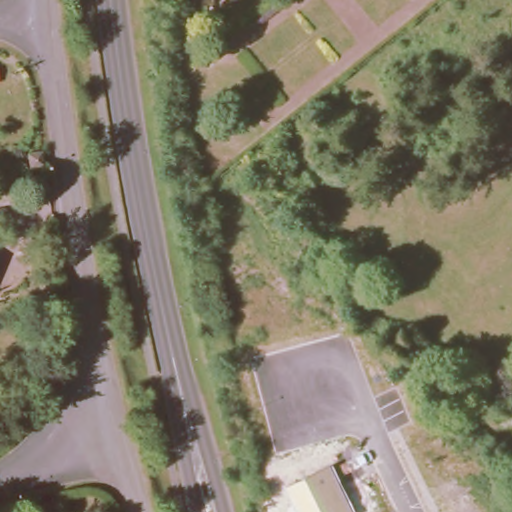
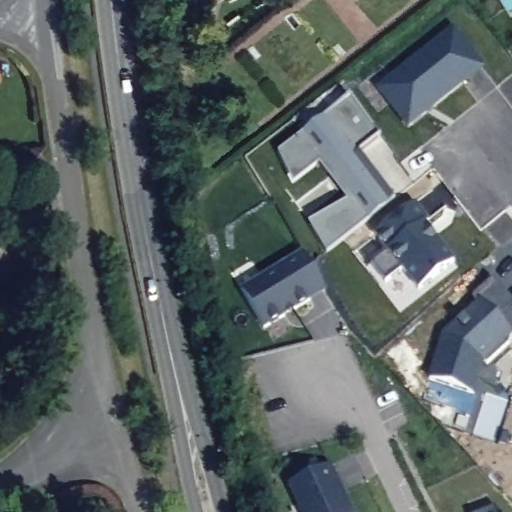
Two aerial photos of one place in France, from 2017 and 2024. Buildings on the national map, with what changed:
new [(377,88),(454,26),(485,69),(409,128),(377,88)]
new [(328,124),(352,104),(378,138),(354,157),(390,203),(378,212),(373,206),(363,214),(367,219),(331,248),(315,228),(347,202),(340,194),(346,189),(324,163),(295,185),(286,174),(295,166),(284,153),(325,120),(328,124)]
unchanged [(50,154),(51,169),(32,173),(29,158),(50,154)]
new [(387,251),(374,235),(414,204),(429,222),(425,224),(455,262),(417,290),(401,270),(384,284),(372,267),(387,251)]
new [(265,331),(242,294),(302,255),(326,294),(265,331)]
new [(442,335),(479,301),(473,296),(494,279),(512,298),(512,334),(512,335),(512,337),(507,342),(509,344),(484,364),(474,395),(428,379),(442,335)]
unchanged [(355,512),(300,512),(288,487),(332,466),(355,512)]
new [(498,512),(486,512),(497,509),(498,512)]

